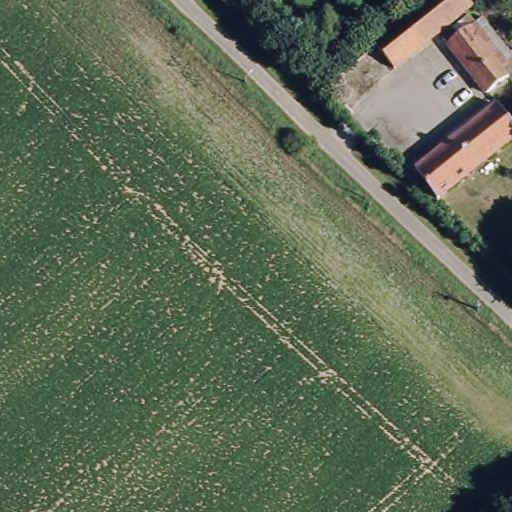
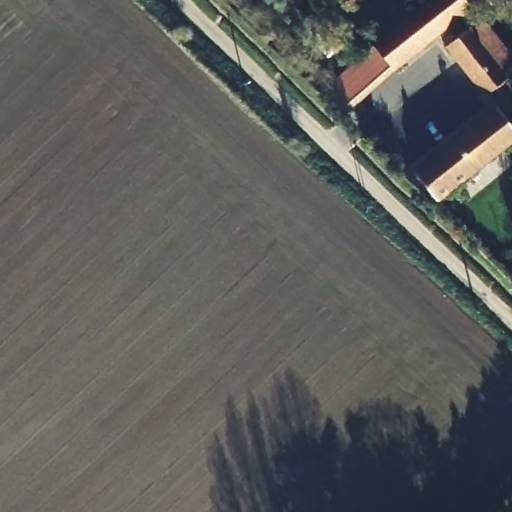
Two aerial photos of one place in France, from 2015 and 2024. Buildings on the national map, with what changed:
unchanged [(407,18),(428,0),(467,0),(472,6),(395,72),(373,47),(407,18)]
unchanged [(512,57),(512,76),(490,94),(442,41),(467,21),(472,27),(480,20),(512,57)]
new [(348,112),(327,87),(373,47),(395,72),(348,112)]
unchanged [(424,184),(418,189),(410,180),(417,175),(412,169),(495,105),(508,121),(512,118),(512,138),(435,197),(424,184)]

